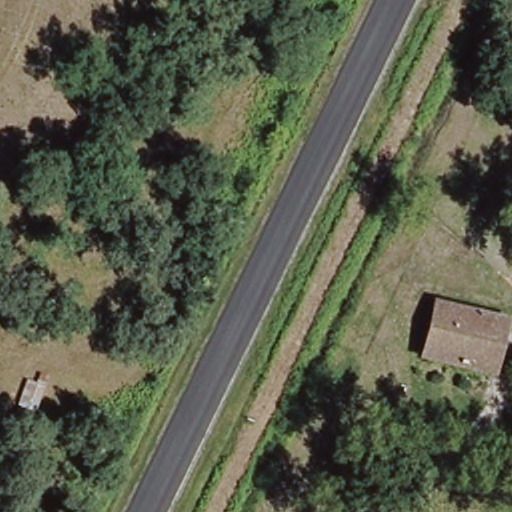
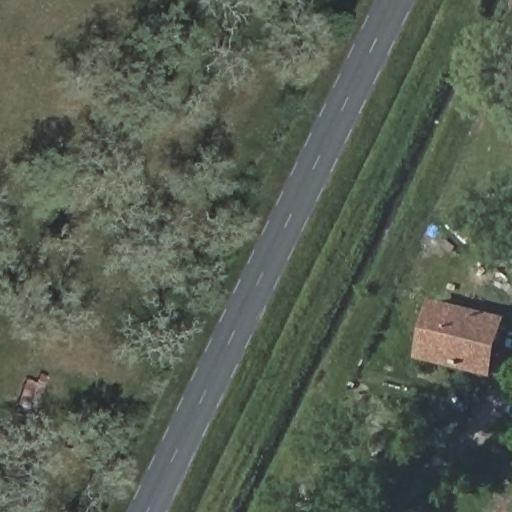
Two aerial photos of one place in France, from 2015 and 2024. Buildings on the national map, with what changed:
unchanged [(421,371),(436,297),(503,313),(485,381),(421,371)]
unchanged [(25,381),(45,385),(36,413),(17,407),(25,381)]

